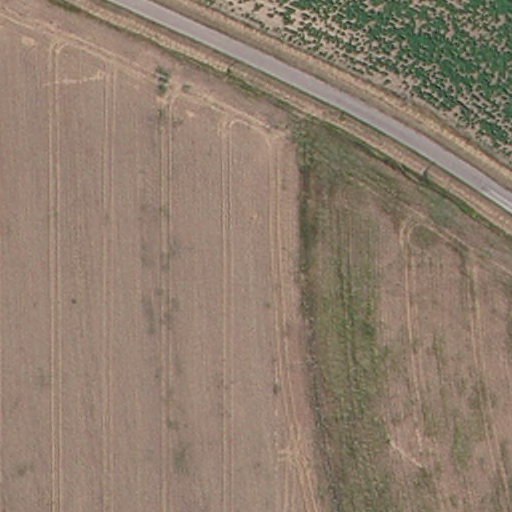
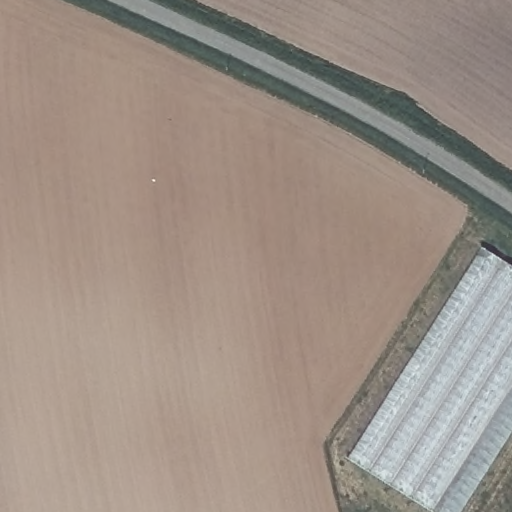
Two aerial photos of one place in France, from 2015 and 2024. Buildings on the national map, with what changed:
new [(482,248),(512,267),(512,431),(460,512),(432,512),(348,459),(482,248)]

